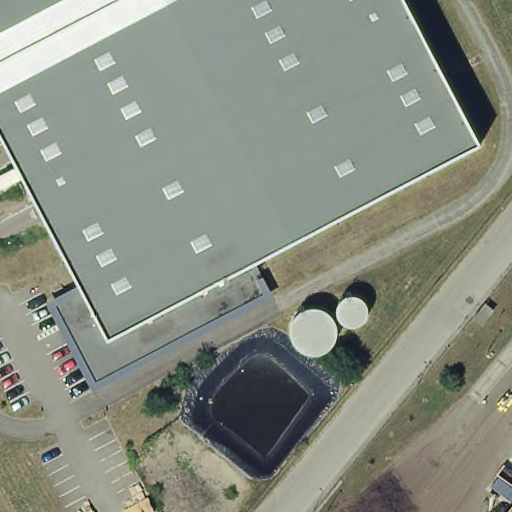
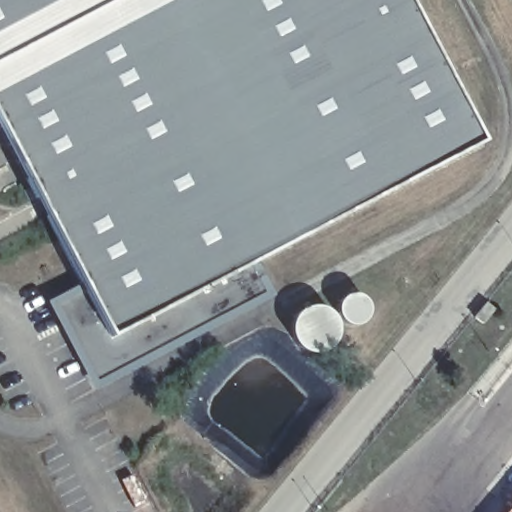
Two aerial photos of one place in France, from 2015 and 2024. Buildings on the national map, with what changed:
unchanged [(252,257),(268,292),(95,384),(51,300),(81,283),(0,128),(0,0),(406,0),(478,139),(252,257)]
unchanged [(485,300),(492,306),(480,320),(472,314),(485,300)]

